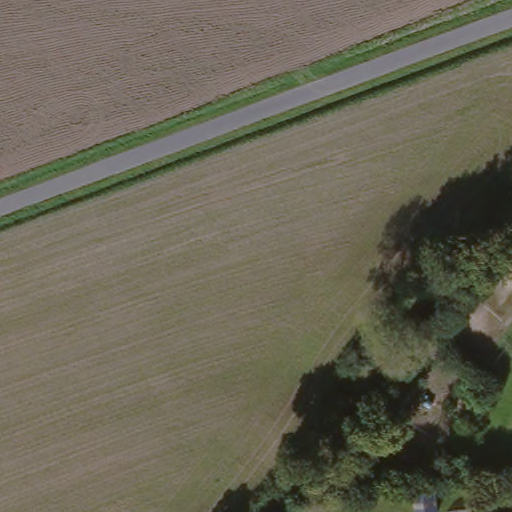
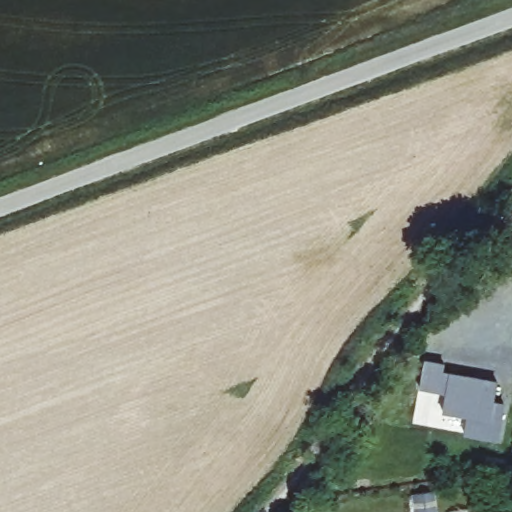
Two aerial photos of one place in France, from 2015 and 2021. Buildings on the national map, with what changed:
new [(446,361),(444,372),(498,381),(494,399),(506,403),(498,442),(464,436),(468,418),(441,415),(444,394),(419,389),(424,359),(446,361)]
unchanged [(439,492),(440,512),(421,512),(420,494),(439,492)]

